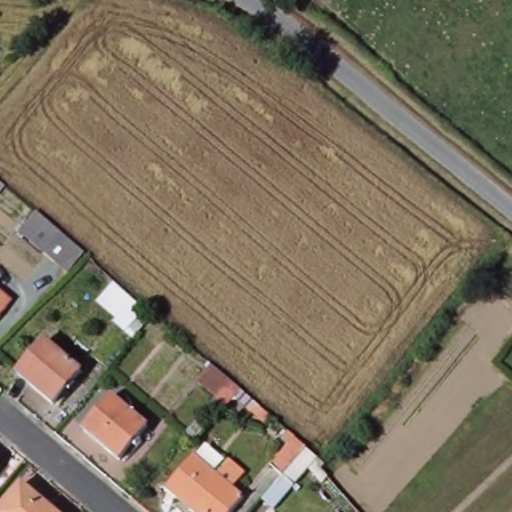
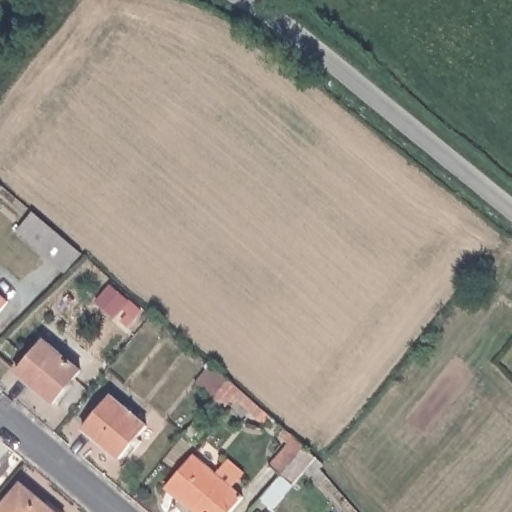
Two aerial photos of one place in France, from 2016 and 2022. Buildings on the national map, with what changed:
unchanged [(68,270),(19,229),(34,213),(84,255),(68,270)]
unchanged [(10,299),(0,312),(0,291),(10,299)]
unchanged [(47,340),(82,369),(55,402),(20,373),(47,340)]
unchanged [(244,390),(266,412),(259,420),(236,399),(231,406),(196,385),(212,366),(244,390)]
unchanged [(114,396),(149,425),(122,457),(87,428),(114,396)]
unchanged [(273,467),(295,439),(307,450),(318,460),(274,511),(264,502),(285,477),(273,467)]
unchanged [(218,476),(229,462),(245,475),(234,490),(245,499),(234,512),(194,512),(169,491),(196,457),(218,476)]
unchanged [(1,462),(0,463),(0,461),(1,462)]
unchanged [(63,512),(1,512),(26,481),(63,512)]

